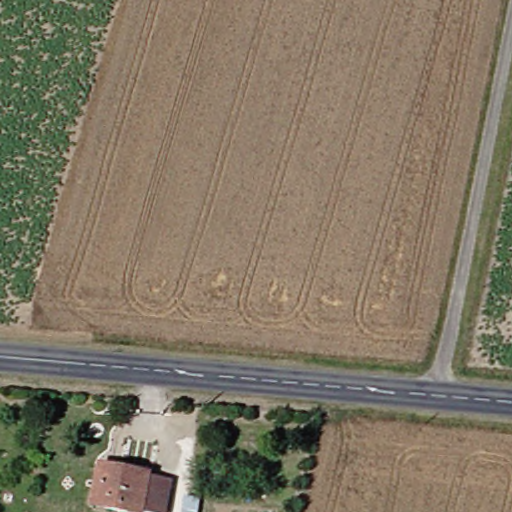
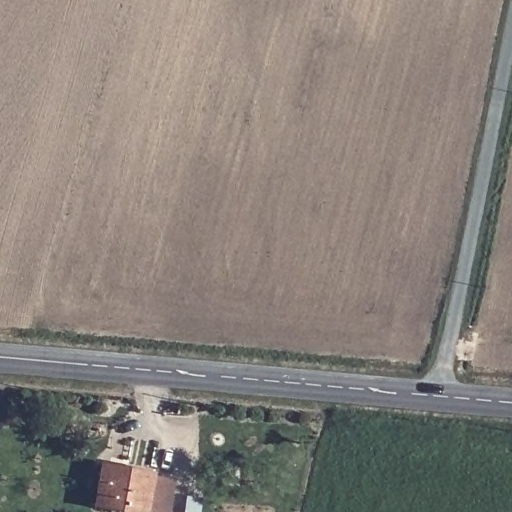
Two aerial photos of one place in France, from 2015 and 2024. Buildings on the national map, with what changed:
unchanged [(183,481),(176,512),(154,512),(134,512),(106,506),(115,467),(183,481)]

